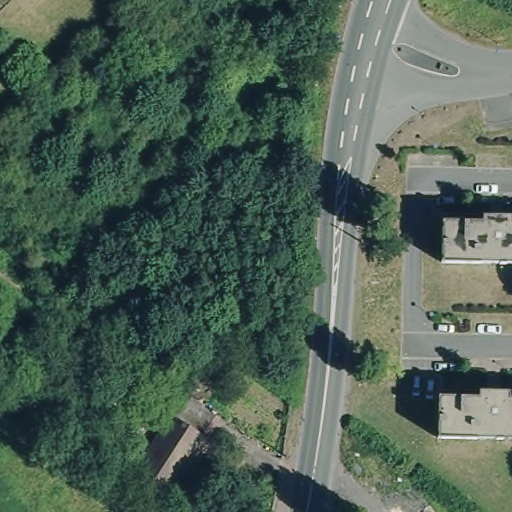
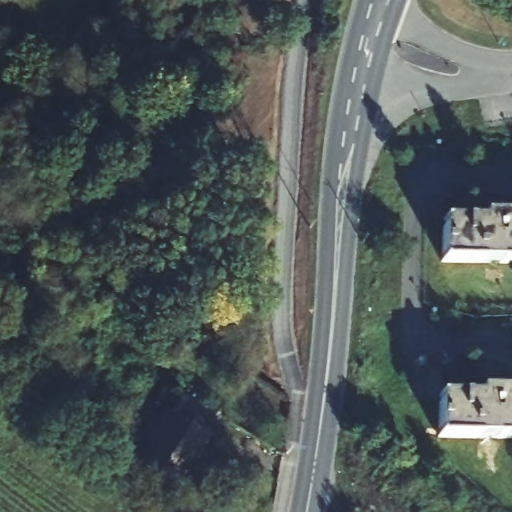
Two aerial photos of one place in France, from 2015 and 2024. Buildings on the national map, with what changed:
unchanged [(444,217),(484,218),(484,212),(512,212),(512,261),(443,260),(444,217)]
unchanged [(434,402),(474,403),(474,397),(503,397),(504,404),(512,404),(512,445),(434,443),(434,402)]
unchanged [(182,418),(209,436),(163,510),(131,490),(178,415),(182,418)]

